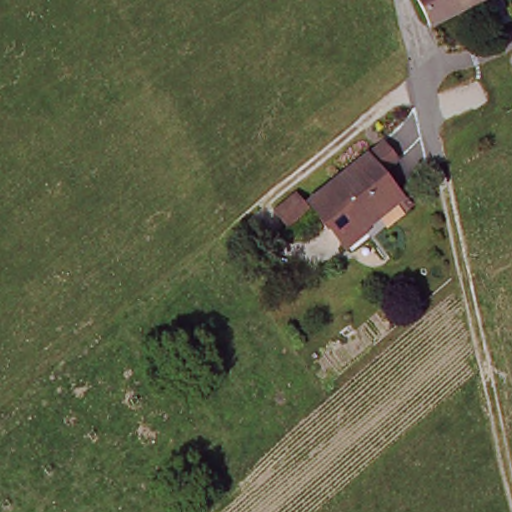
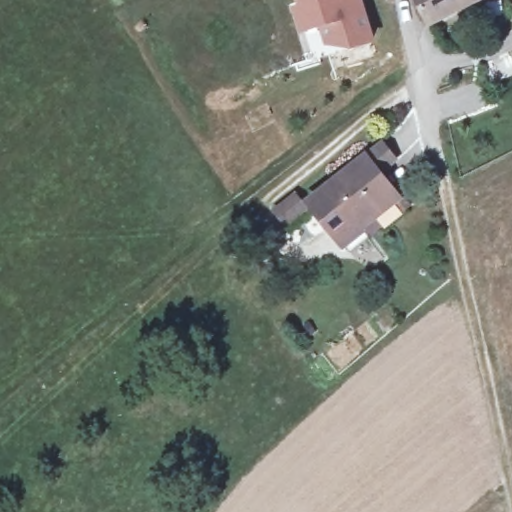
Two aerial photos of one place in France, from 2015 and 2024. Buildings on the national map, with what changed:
new [(371,40),(351,47),(347,37),(328,44),(321,25),(303,31),(296,10),(303,8),(300,0),(358,0),(371,40)]
unchanged [(419,0),(490,0),(438,29),(419,0)]
unchanged [(396,161),(386,172),(404,196),(339,251),(305,218),(286,230),(273,212),(295,189),(302,197),(376,140),(396,161)]

